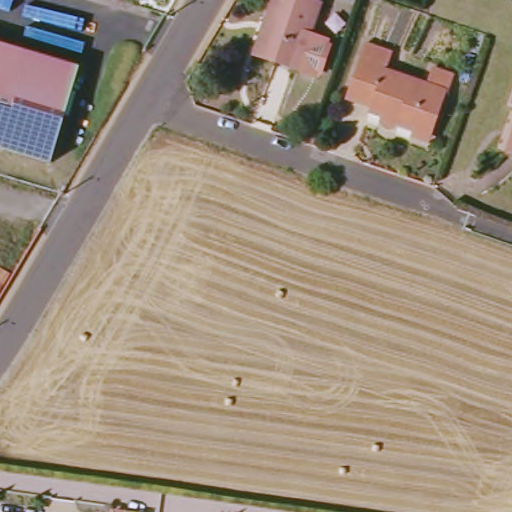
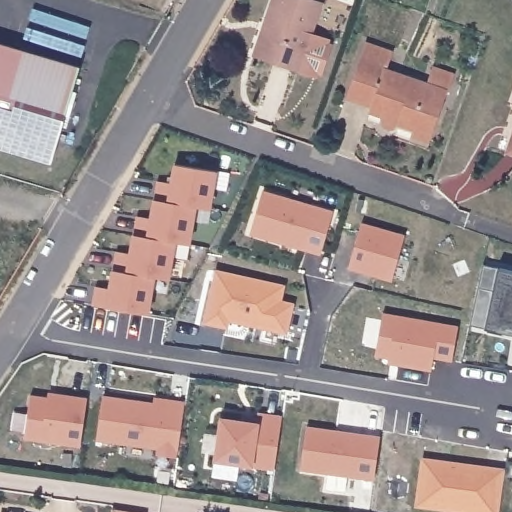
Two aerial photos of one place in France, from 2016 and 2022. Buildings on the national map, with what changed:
unchanged [(324,47),(315,76),(311,74),(306,76),(292,71),(255,59),(249,57),(259,23),(267,0),(296,0),(314,6),(304,37),(318,42),(321,46),(324,47)]
unchanged [(409,134),(413,123),(397,118),(396,123),(391,126),(386,126),(382,125),(380,121),(379,113),(369,109),(371,103),(346,95),(361,54),(366,41),(391,50),(387,63),(385,68),(424,81),(430,64),(453,71),(431,130),(427,140),(409,134)]
unchanged [(83,68),(54,163),(0,147),(0,43),(83,68)]
new [(158,181),(171,184),(175,165),(216,171),(209,209),(155,200),(158,181)]
new [(263,190),(333,211),(321,253),(251,233),(263,190)]
new [(189,244),(134,235),(138,217),(151,219),(154,200),(195,207),(189,244)]
new [(361,224),(404,236),(392,280),(349,267),(361,224)]
new [(174,242),(168,280),(114,271),(117,252),(131,254),(133,235),(135,236),(174,242)]
new [(472,313),(483,263),(498,267),(512,270),(512,329),(490,324),(489,329),(484,328),(469,325),(472,313)]
new [(154,277),(148,315),(93,305),(95,287),(109,289),(112,270),(154,277)]
new [(283,287),(279,302),(292,305),(286,333),(228,319),(226,327),(205,322),(216,272),(283,287)]
new [(458,327),(452,360),(434,356),(431,369),(399,364),(399,359),(376,354),(383,314),(458,327)]
new [(30,396),(54,400),(55,395),(88,399),(80,446),(24,438),(30,396)]
new [(161,405),(162,400),(185,403),(178,458),(158,455),(158,448),(97,439),(103,396),(161,405)]
new [(154,399),(162,400),(161,405),(153,404),(154,399)]
new [(283,417),(275,469),(215,460),(221,418),(257,423),(258,419),(259,414),(283,417)]
new [(258,418),(257,423),(241,421),(241,416),(258,418)]
new [(380,438),(374,480),(301,469),(306,427),(380,438)]
new [(505,470),(504,482),(499,512),(467,512),(417,505),(424,459),(487,468),(505,470)]
unchanged [(115,507),(146,512),(115,512),(115,507)]

